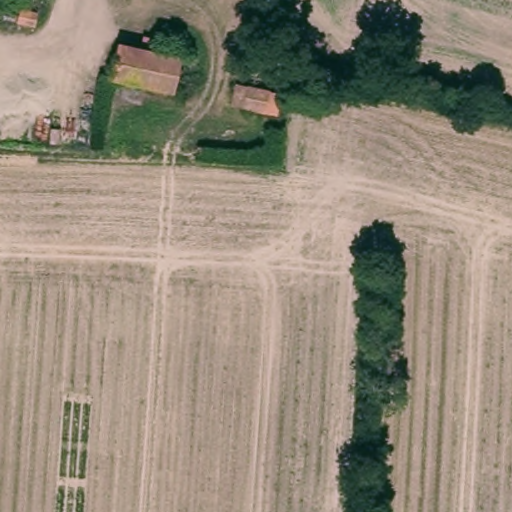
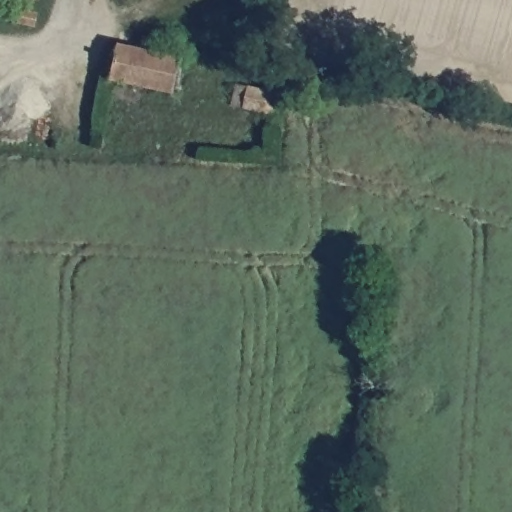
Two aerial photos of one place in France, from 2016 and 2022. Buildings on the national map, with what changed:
unchanged [(48,14),(44,30),(23,26),(26,11),(48,14)]
unchanged [(148,37),(144,51),(163,55),(161,62),(153,88),(94,72),(104,41),(119,44),(124,31),(148,37)]
unchanged [(215,77),(230,82),(233,76),(235,73),(241,72),(248,72),(253,77),(251,87),(264,90),(257,112),(209,101),(215,77)]

